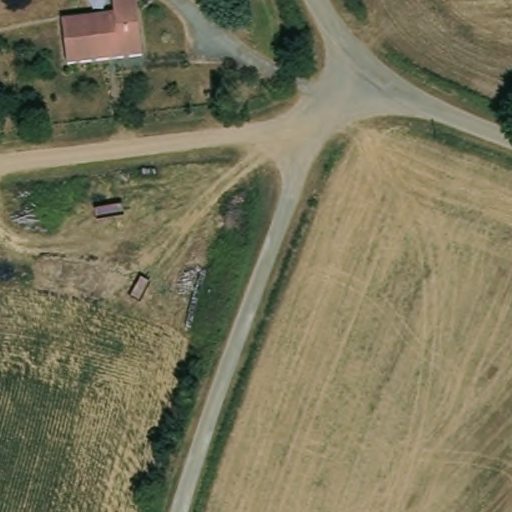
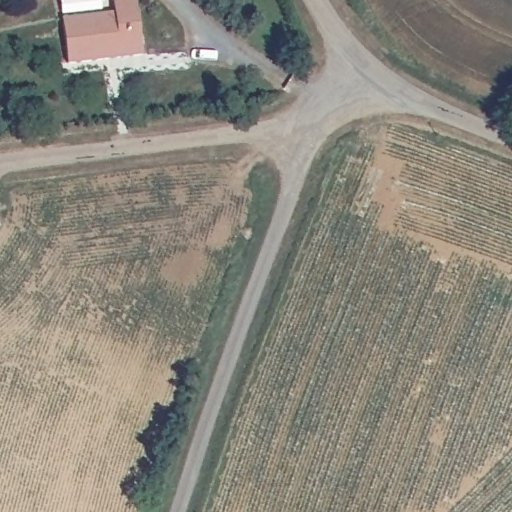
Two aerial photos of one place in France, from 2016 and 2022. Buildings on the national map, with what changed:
unchanged [(118,13),(116,0),(140,0),(147,54),(73,64),(68,20),(118,13)]

